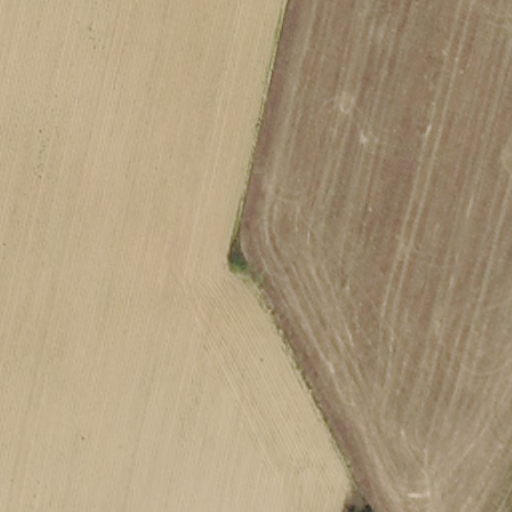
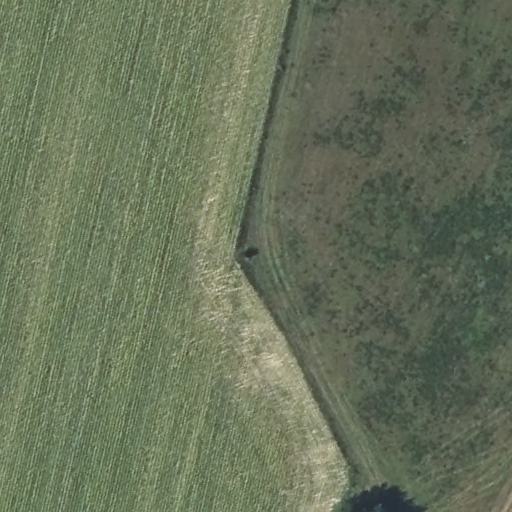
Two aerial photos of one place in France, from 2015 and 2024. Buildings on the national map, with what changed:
[]

